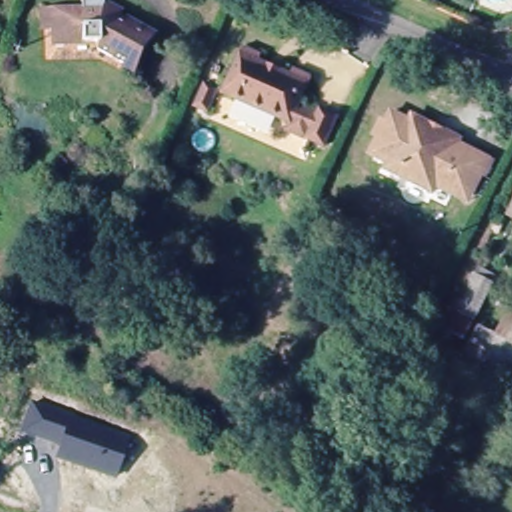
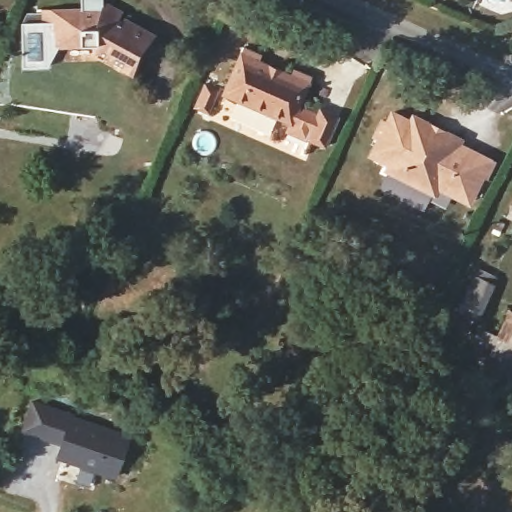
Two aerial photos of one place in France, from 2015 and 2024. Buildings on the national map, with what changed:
unchanged [(108,0),(124,9),(120,16),(150,33),(133,66),(100,48),(99,39),(59,41),(60,25),(54,26),(45,26),(45,9),(54,8),(82,7),(82,0),(108,0)]
unchanged [(226,91),(245,46),(263,53),(261,60),(291,73),(295,66),(313,74),(300,104),(293,121),(226,91)]
unchanged [(215,109),(200,102),(209,81),(222,88),(223,90),(215,109)]
unchanged [(290,128),(293,121),(300,104),(319,112),(321,106),(340,114),(327,144),(310,136),(290,128)]
unchanged [(458,198),(443,191),(440,197),(394,176),(396,170),(378,161),(387,144),(381,141),(389,126),(393,128),(398,116),(417,125),(420,121),(466,143),(464,148),(478,155),(497,164),(490,180),(488,178),(478,198),(475,205),(458,198)]
unchanged [(512,212),(512,214),(511,214),(512,212)]
unchanged [(512,294),(495,330),(475,320),(491,285),(512,294)]
unchanged [(480,369),(497,335),(512,343),(512,386),(480,369)]
unchanged [(130,434),(116,479),(56,459),(60,445),(21,432),(32,400),(130,434)]
unchanged [(378,496),(396,464),(408,442),(422,418),(458,438),(445,461),(437,457),(425,478),(410,471),(391,504),(378,496)]

